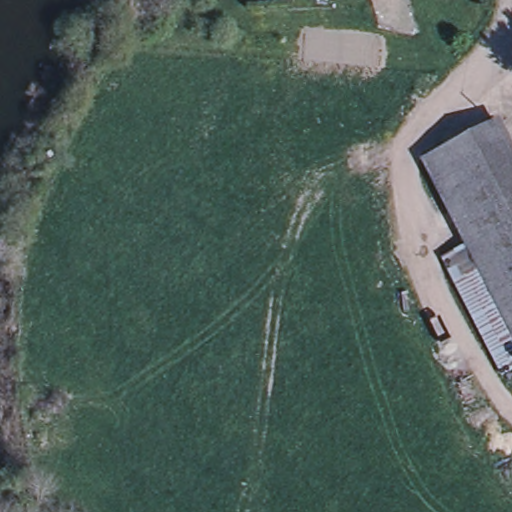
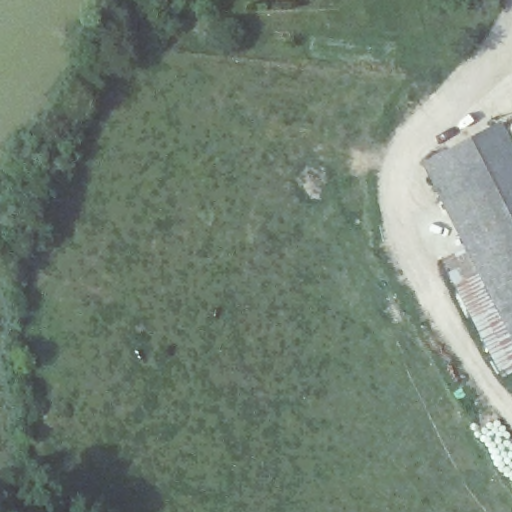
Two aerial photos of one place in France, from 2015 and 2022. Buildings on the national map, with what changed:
unchanged [(493,120),(512,158),(512,224),(458,250),(456,247),(413,160),(493,120)]
unchanged [(512,362),(458,250),(512,224),(512,362)]
unchanged [(458,250),(512,362),(512,363),(498,370),(441,255),(456,247),(458,250)]

